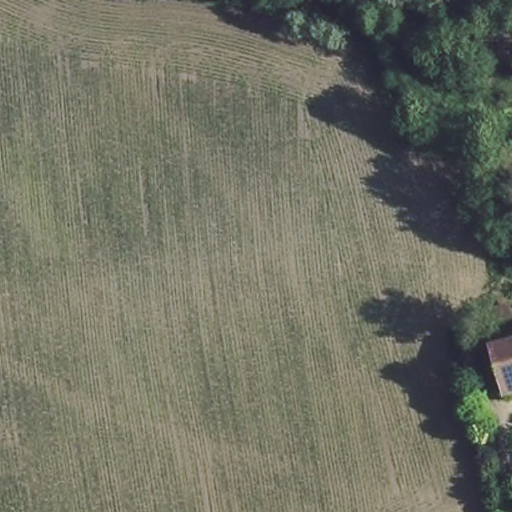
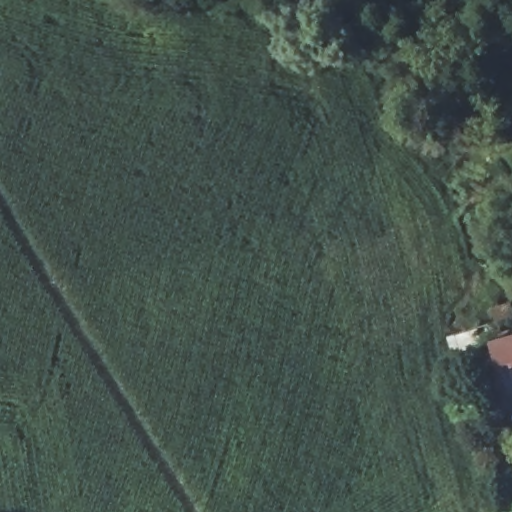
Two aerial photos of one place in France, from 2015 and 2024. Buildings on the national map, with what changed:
unchanged [(499,387),(497,375),(489,337),(512,332),(512,384),(499,387)]

